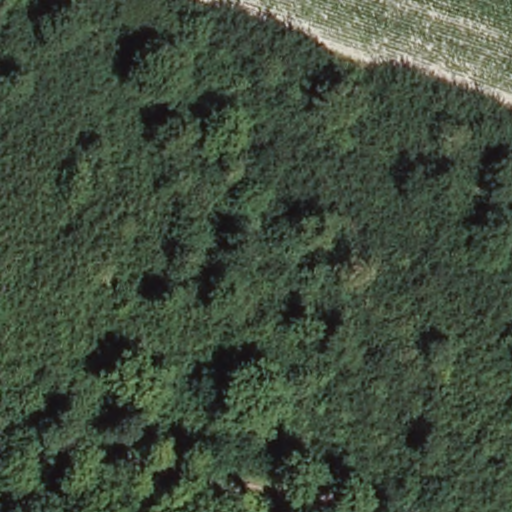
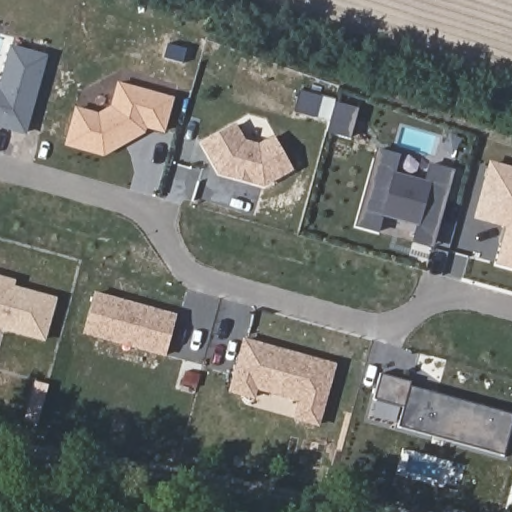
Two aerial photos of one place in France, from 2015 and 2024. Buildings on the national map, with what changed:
new [(10,46),(49,56),(27,136),(0,128),(0,82),(10,46)]
new [(99,117),(112,109),(118,87),(170,101),(162,132),(146,127),(144,132),(135,138),(129,137),(124,140),(124,144),(103,156),(66,147),(76,110),(99,117)]
new [(335,102),(359,109),(351,139),(327,133),(335,102)]
new [(237,124),(246,141),(260,143),(275,136),(295,171),(263,187),(218,175),(200,143),(237,124)]
new [(377,149),(401,156),(396,174),(425,181),(430,164),(455,171),(432,249),(412,242),(417,227),(384,217),(379,234),(355,227),(377,149)]
new [(478,219),(491,166),(512,171),(512,267),(498,263),(508,227),(478,219)]
new [(16,281),(15,286),(57,298),(46,342),(0,329),(0,276),(16,281)]
new [(92,296),(174,318),(164,357),(82,335),(92,296)]
new [(257,391),(255,398),(227,392),(243,337),(336,364),(319,427),(292,420),(297,402),(257,391)]
new [(374,400),(381,376),(411,383),(409,390),(512,418),(512,430),(505,458),(397,429),(403,408),(374,400)]

